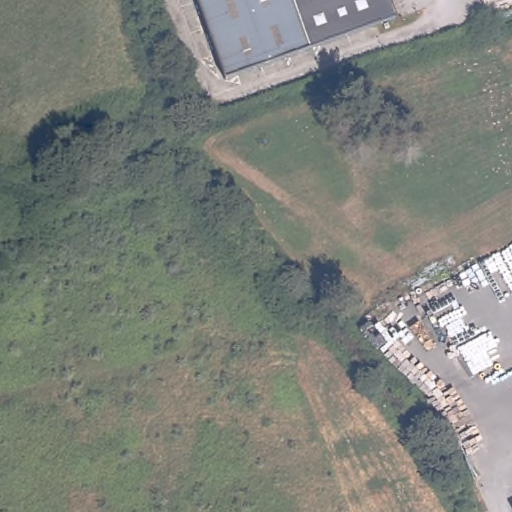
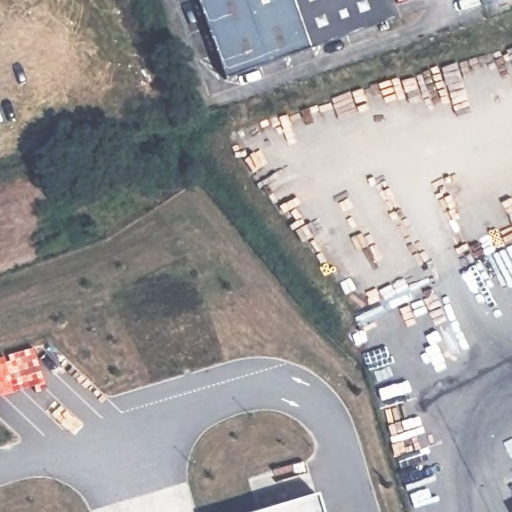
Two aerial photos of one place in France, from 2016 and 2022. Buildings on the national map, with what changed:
unchanged [(225,76),(199,0),(393,0),(398,14),(225,76)]
new [(317,495),(322,512),(255,512),(317,495)]

